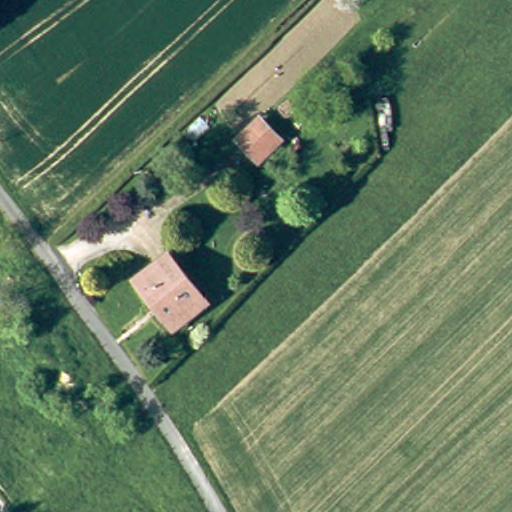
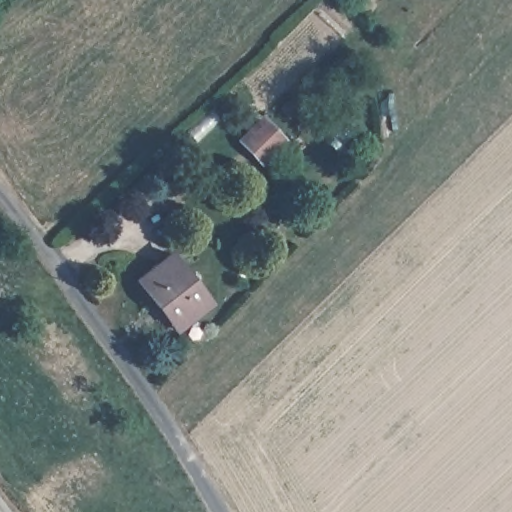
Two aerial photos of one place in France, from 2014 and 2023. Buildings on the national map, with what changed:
unchanged [(266,121),(284,139),(263,159),(246,141),(266,121)]
unchanged [(162,308),(141,280),(175,254),(213,304),(184,327),(180,330),(162,308)]

